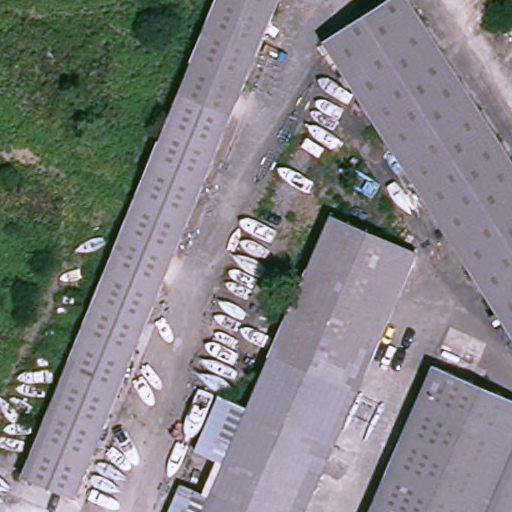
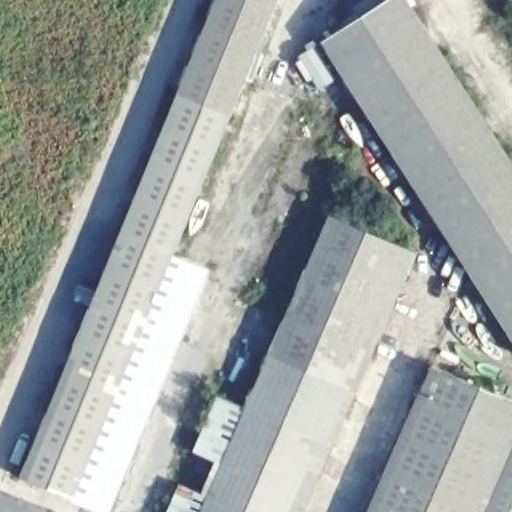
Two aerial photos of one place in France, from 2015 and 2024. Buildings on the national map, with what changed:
unchanged [(25,467),(215,0),(279,0),(80,490),(25,467)]
unchanged [(384,122),(330,38),(388,0),(413,0),(512,155),(512,321),(384,122)]
unchanged [(309,512),(203,512),(207,501),(333,209),(423,247),(309,512)]
new [(209,269),(110,512),(100,512),(75,502),(80,490),(176,255),(209,269)]
unchanged [(435,360),(512,393),(512,512),(369,512),(435,360)]
new [(178,483),(202,492),(215,460),(193,451),(216,396),(247,408),(207,501),(203,512),(166,512),(178,483)]

